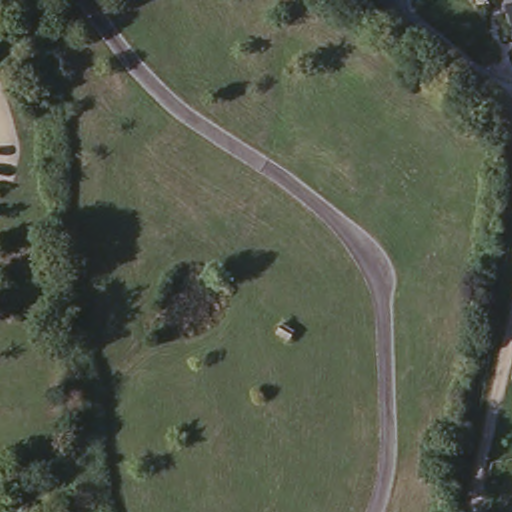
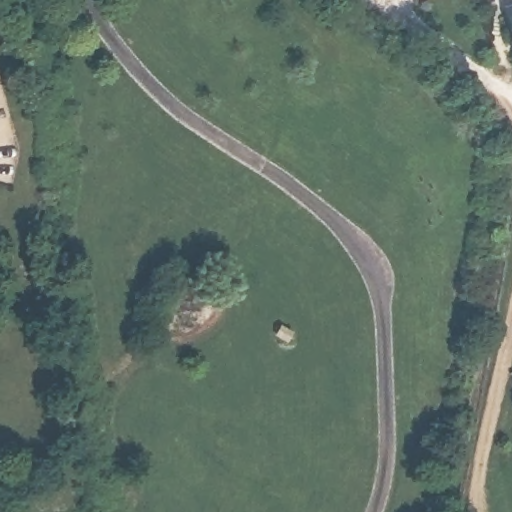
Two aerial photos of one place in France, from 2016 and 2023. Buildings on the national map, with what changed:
unchanged [(502,10),(512,8),(512,42),(511,42),(502,10)]

